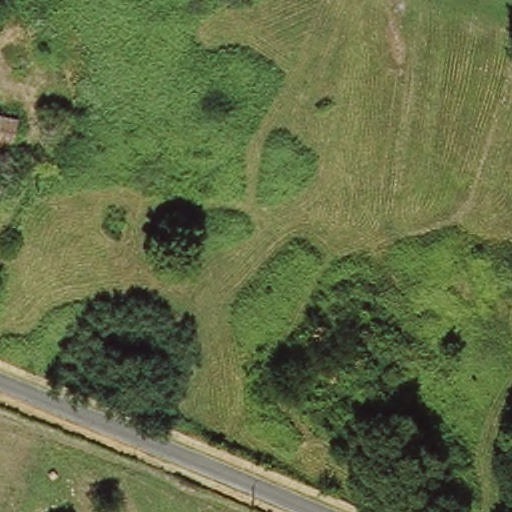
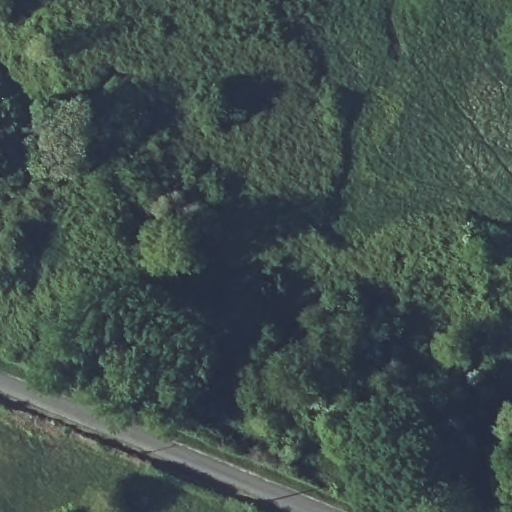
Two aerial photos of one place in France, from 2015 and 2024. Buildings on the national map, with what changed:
unchanged [(10,148),(0,149),(0,111),(13,111),(10,148)]

